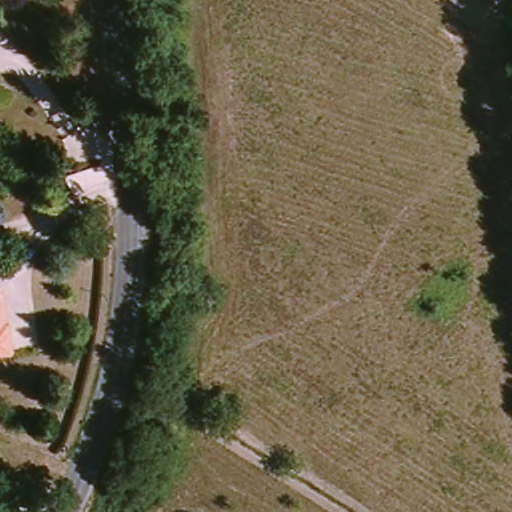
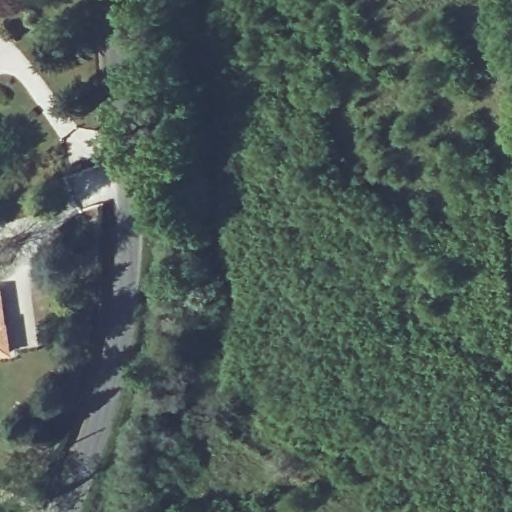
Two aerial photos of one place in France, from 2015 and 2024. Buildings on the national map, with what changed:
unchanged [(11,350),(0,351),(0,322),(8,322),(11,350)]

